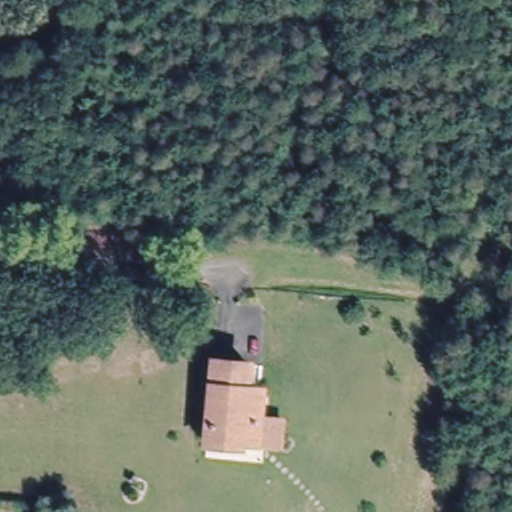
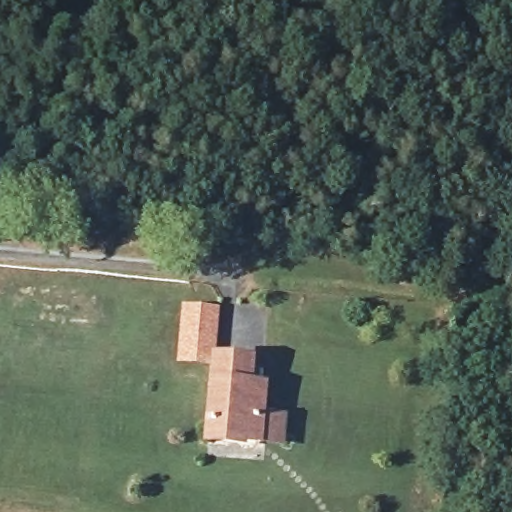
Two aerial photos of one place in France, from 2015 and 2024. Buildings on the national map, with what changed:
new [(210,355),(209,366),(177,362),(182,304),(220,308),(210,355)]
unchanged [(200,435),(201,431),(210,355),(243,359),(240,384),(256,386),(254,397),(252,416),(277,419),(274,440),(249,437),(235,435),(234,440),(200,435)]

